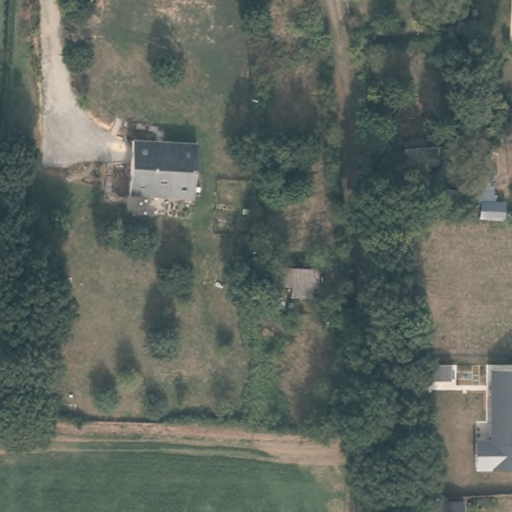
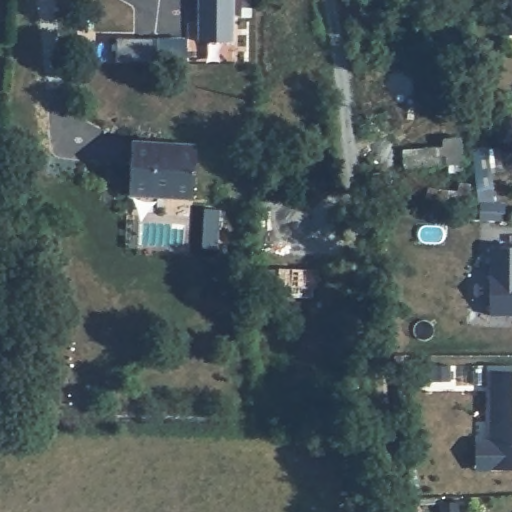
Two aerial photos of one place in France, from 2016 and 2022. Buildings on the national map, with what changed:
new [(234,0),(234,41),(198,41),(198,0),(234,0)]
unchanged [(463,17),(469,18),(469,27),(463,26),(463,17)]
unchanged [(471,40),(469,64),(457,62),(459,39),(471,40)]
unchanged [(449,140),(449,131),(467,130),(469,163),(455,164),(454,157),(411,160),(409,142),(449,140)]
unchanged [(129,140),(193,145),(190,198),(126,194),(129,140)]
unchanged [(509,213),(486,211),(486,196),(484,196),(482,180),(482,175),(479,144),(494,142),(499,195),(511,195),(509,213)]
unchanged [(399,187),(384,187),(383,165),(398,165),(399,187)]
unchanged [(464,185),(466,175),(475,176),(473,196),(433,190),(434,181),(464,185)]
new [(489,246),(512,246),(512,315),(489,315),(489,246)]
unchanged [(298,276),(285,275),(286,257),(325,260),(325,277),(319,277),(319,287),(298,286),(298,276)]
unchanged [(11,293),(13,278),(0,277),(0,261),(28,265),(24,295),(23,303),(9,301),(11,293)]
unchanged [(270,278),(293,280),(292,298),(269,297),(270,278)]
unchanged [(473,440),(488,440),(488,368),(512,369),(512,469),(474,470),(473,440)]

